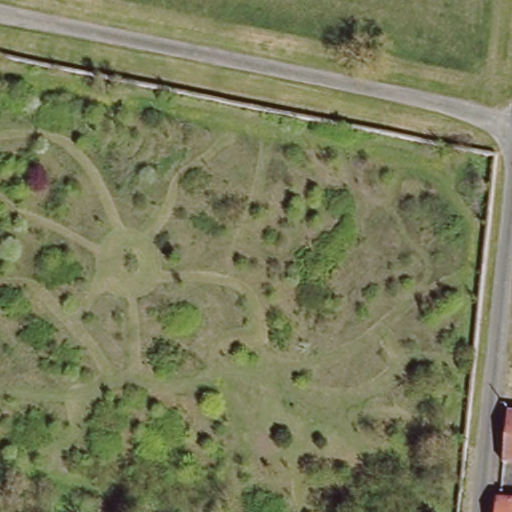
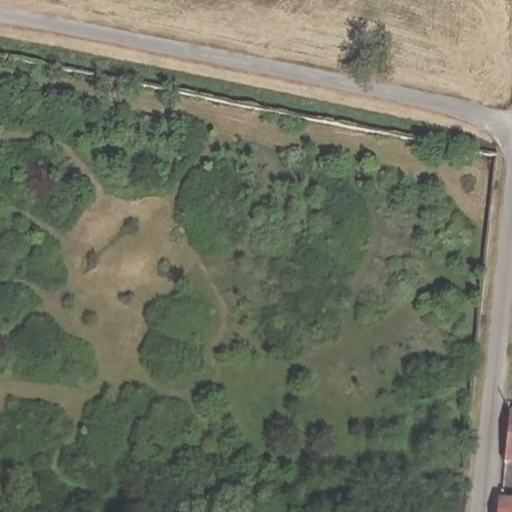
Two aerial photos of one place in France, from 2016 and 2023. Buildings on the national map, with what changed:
unchanged [(511,462),(511,460),(512,450),(512,462),(511,462)]
unchanged [(507,498),(512,498),(512,512),(505,512),(507,498)]

